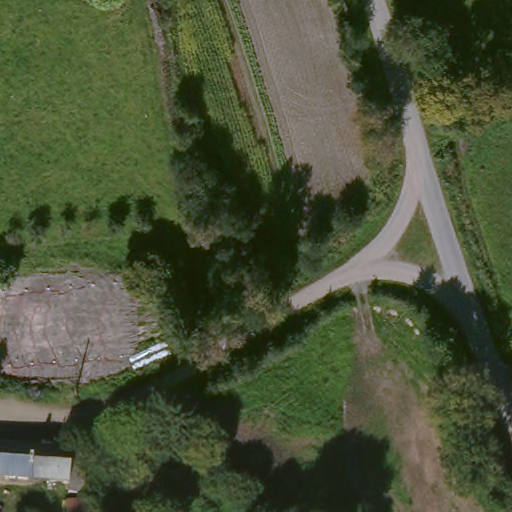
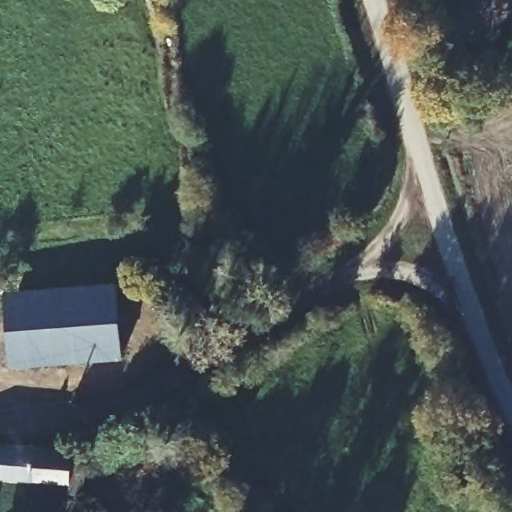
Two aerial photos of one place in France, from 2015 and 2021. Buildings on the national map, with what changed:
new [(124,358),(9,368),(4,291),(116,281),(124,358)]
unchanged [(86,484),(0,470),(0,440),(91,454),(86,484)]

